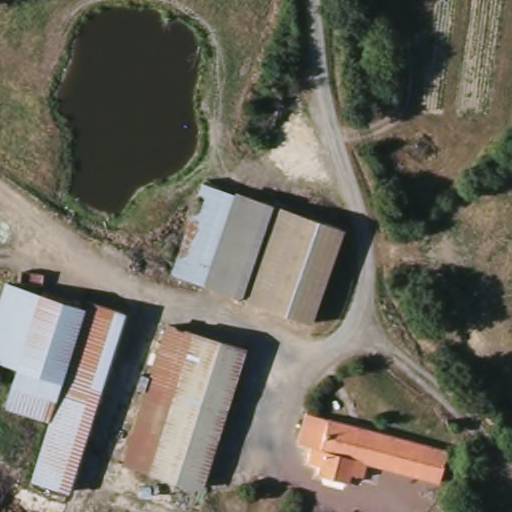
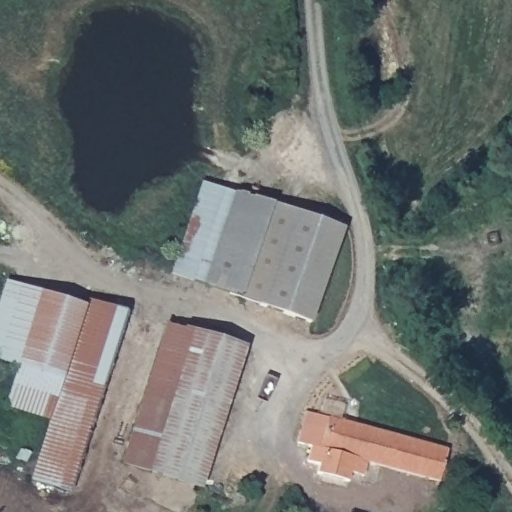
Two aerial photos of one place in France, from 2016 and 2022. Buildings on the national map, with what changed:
unchanged [(180,276),(208,188),(272,209),(239,294),(180,276)]
unchanged [(272,209),(345,229),(315,319),(239,294),(272,209)]
unchanged [(90,426),(87,432),(55,426),(10,411),(23,367),(0,357),(0,321),(10,283),(87,306),(89,300),(125,310),(91,425),(90,426)]
unchanged [(166,328),(249,350),(210,485),(126,464),(166,328)]
unchanged [(308,413),(450,447),(438,480),(375,465),(369,477),(351,474),(348,482),(320,476),(321,466),(311,462),(313,448),(300,447),(308,413)]
unchanged [(72,487),(61,486),(40,478),(55,426),(87,432),(72,487)]

